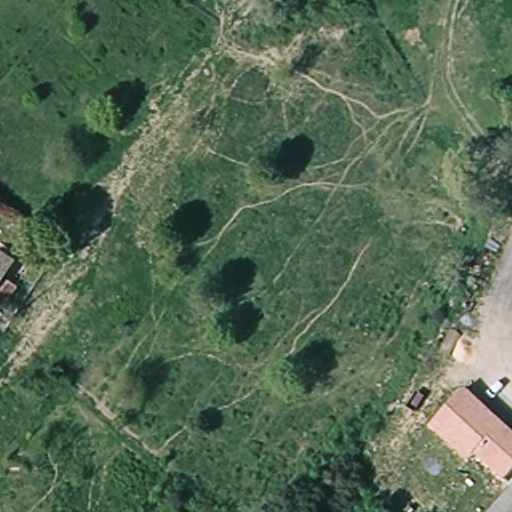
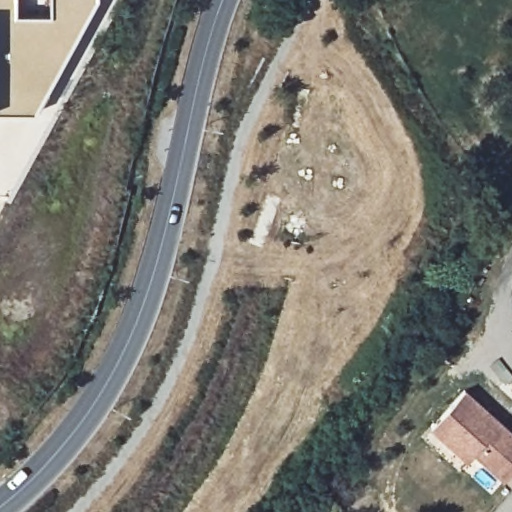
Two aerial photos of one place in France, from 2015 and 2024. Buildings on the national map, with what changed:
new [(33,111),(0,111),(0,0),(14,0),(15,14),(49,12),(49,0),(93,0),(33,111)]
demolished [(1,281),(0,282),(0,280),(1,281)]
unchanged [(474,455),(467,461),(430,427),(463,388),(512,432),(512,471),(504,481),(474,455)]
unchanged [(512,512),(490,512),(512,487),(512,512)]

